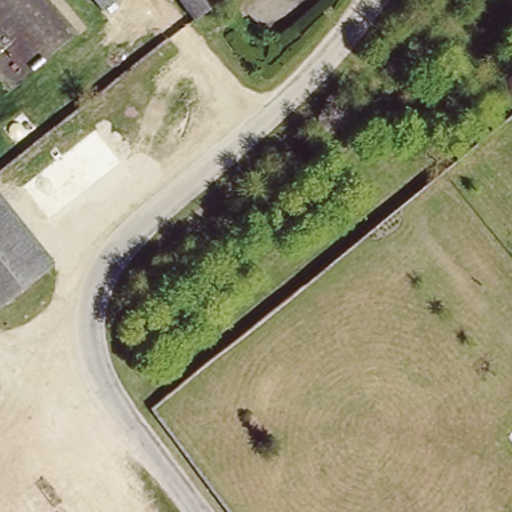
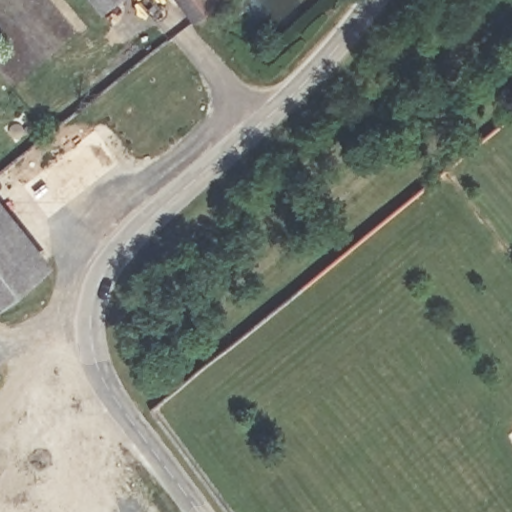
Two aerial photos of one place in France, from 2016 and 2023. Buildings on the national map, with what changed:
unchanged [(95,0),(111,0),(101,8),(95,0)]
unchanged [(178,0),(214,0),(192,17),(178,0)]
unchanged [(50,264),(0,305),(0,201),(50,264)]

